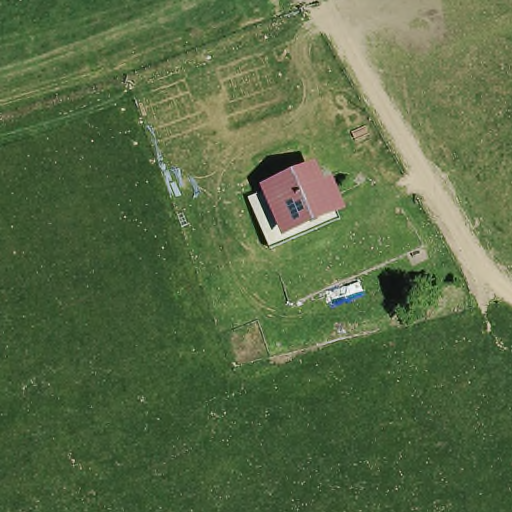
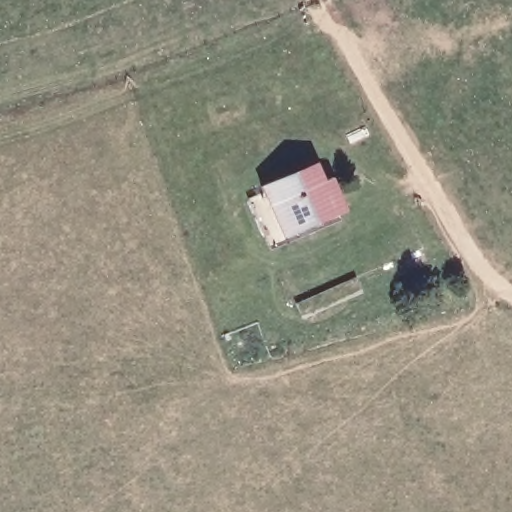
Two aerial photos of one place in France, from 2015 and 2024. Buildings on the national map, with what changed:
unchanged [(271,195),(311,184),(316,201),(331,197),(339,222),(285,239),(271,195)]

